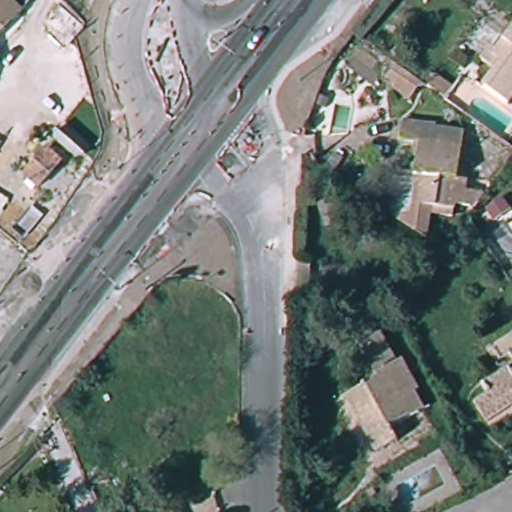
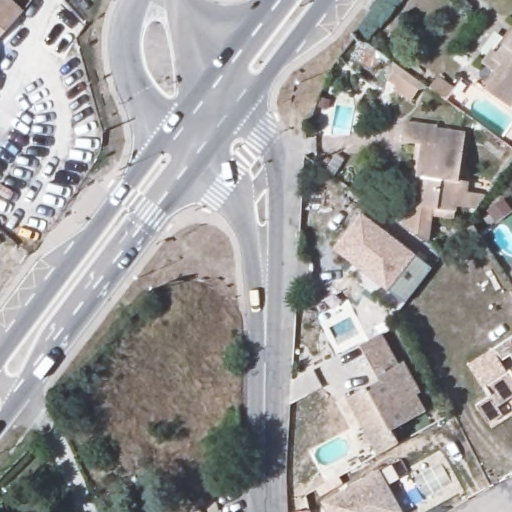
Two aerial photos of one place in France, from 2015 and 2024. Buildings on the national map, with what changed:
unchanged [(23,12),(0,38),(0,0),(9,0),(23,12)]
unchanged [(502,79),(489,69),(512,36),(512,109),(492,94),(502,79)]
unchanged [(411,101),(393,89),(395,86),(388,80),(393,73),(418,91),(411,101)]
unchanged [(399,204),(394,201),(397,180),(403,180),(404,168),(417,170),(421,139),(403,137),(406,117),(436,121),(435,126),(465,129),(459,177),(469,178),(468,187),(483,189),(473,203),(458,202),(457,207),(450,207),(450,212),(432,210),(428,238),(398,216),(399,204)]
unchanged [(41,187),(27,176),(50,150),(63,161),(41,187)]
demolished [(333,200),(342,222),(328,228),(319,205),(333,200)]
new [(335,250),(361,215),(433,269),(406,304),(388,291),(360,269),(335,250)]
unchanged [(387,432),(394,443),(374,455),(343,398),(374,381),(356,347),(376,335),(393,366),(398,362),(414,392),(411,395),(420,412),(387,432)]
unchanged [(502,362),(494,349),(512,337),(512,360),(510,357),(502,362)]
unchanged [(476,403),(488,396),(483,387),(512,368),(512,408),(488,422),(476,403)]
new [(401,511),(399,512),(329,512),(323,500),(378,470),(401,511)]
unchanged [(311,512),(304,512),(311,511),(311,512)]

